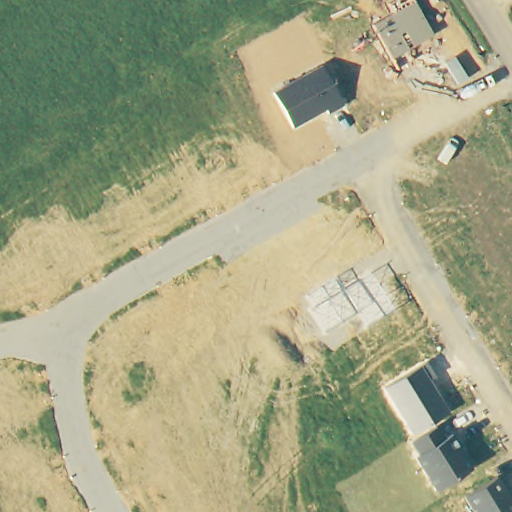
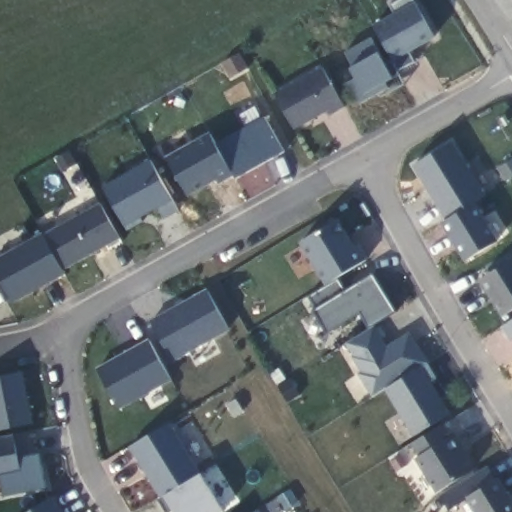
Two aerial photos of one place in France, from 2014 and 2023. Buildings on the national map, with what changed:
unchanged [(395,14),(389,4),(397,0),(414,0),(435,37),(407,51),(412,60),(398,68),(374,25),(395,14)]
new [(398,68),(405,84),(380,98),(378,94),(360,104),(348,82),(357,80),(351,70),(353,67),(345,52),(371,38),(383,57),(390,54),(398,68)]
unchanged [(323,67),(346,105),(329,115),(327,110),(294,129),(276,93),(323,67)]
new [(265,116),(284,151),(236,178),(216,143),(265,116)]
new [(218,184),(215,180),(187,194),(166,155),(210,131),(216,143),(234,175),(218,184)]
new [(486,194),(447,220),(412,165),(453,141),(486,194)]
new [(164,220),(157,207),(142,217),(145,221),(128,230),(106,188),(151,161),(179,210),(164,220)]
new [(467,260),(442,222),(447,220),(474,201),(500,240),(467,260)]
new [(101,203),(122,241),(110,249),(108,245),(64,270),(43,234),(101,203)]
new [(336,277),(325,285),(298,242),(338,219),(352,243),(357,239),(367,260),(336,277)]
new [(0,278),(0,258),(43,234),(64,270),(12,300),(0,278)]
new [(502,316),(480,279),(512,259),(512,310),(502,316)]
unchanged [(336,277),(345,292),(373,274),(395,310),(368,327),(359,315),(327,335),(306,298),(336,277)]
new [(173,362),(149,321),(207,287),(230,330),(173,362)]
new [(384,388),(371,397),(356,373),(360,370),(344,344),(376,325),(387,346),(409,333),(425,365),(384,388)]
new [(118,408),(96,367),(149,338),(172,380),(118,408)]
unchanged [(425,365),(434,380),(430,382),(448,413),(412,436),(384,388),(425,365)]
new [(0,373),(23,368),(34,424),(0,430),(0,373)]
unchanged [(436,492),(416,458),(420,456),(412,443),(439,427),(447,440),(452,436),(472,471),(436,492)]
new [(41,453),(47,488),(2,495),(0,480),(0,437),(24,432),(27,455),(41,453)]
unchanged [(473,510),(465,496),(498,478),(512,501),(512,512),(477,512),(475,509),(473,510)]
new [(60,512),(26,512),(50,497),(60,512)]

